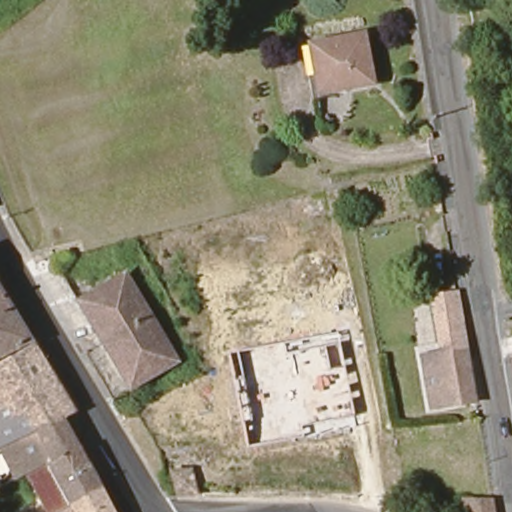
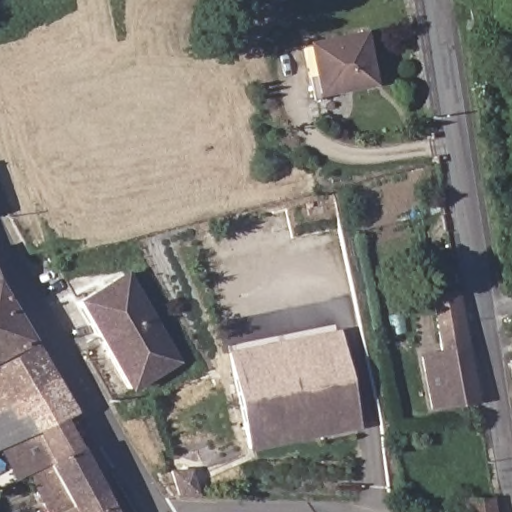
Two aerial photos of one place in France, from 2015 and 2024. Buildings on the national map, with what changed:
unchanged [(373,37),(375,47),(382,46),(386,73),(380,74),(381,85),(345,91),(346,97),(322,100),(313,46),(373,37)]
unchanged [(131,396),(76,305),(129,274),(183,366),(131,396)]
unchanged [(36,346),(0,365),(0,287),(36,346)]
unchanged [(425,359),(440,357),(445,356),(440,314),(465,309),(480,404),(449,409),(435,412),(432,397),(428,374),(425,359)]
new [(340,329),(360,429),(245,451),(226,352),(340,329)]
unchanged [(37,348),(78,418),(67,424),(21,444),(0,454),(0,369),(37,348)]
unchanged [(38,476),(21,444),(67,424),(82,452),(38,476)]
unchanged [(38,476),(82,452),(105,494),(70,512),(49,512),(31,479),(38,476)]
unchanged [(170,474),(190,469),(197,494),(176,494),(170,474)]
unchanged [(105,494),(115,512),(70,512),(105,494)]
unchanged [(467,509),(495,503),(497,512),(468,512),(467,509)]

